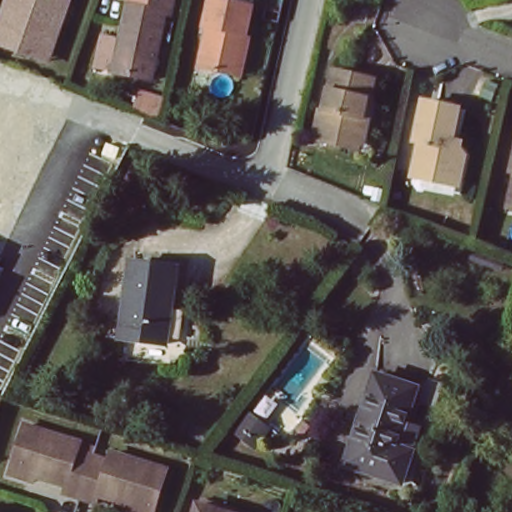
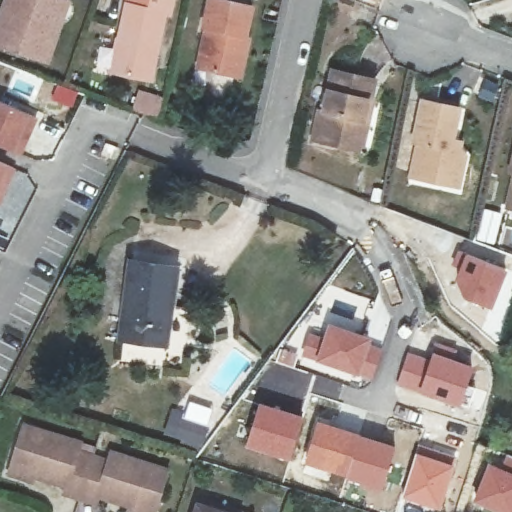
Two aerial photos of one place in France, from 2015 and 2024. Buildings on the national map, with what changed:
unchanged [(50,61),(2,45),(18,0),(71,0),(70,1),(77,4),(57,63),(50,61)]
unchanged [(171,0),(168,14),(159,12),(146,77),(115,72),(128,0),(171,0)]
unchanged [(197,69),(207,26),(200,26),(207,0),(243,0),(256,3),(247,36),(237,78),(230,76),(197,69)]
unchanged [(337,149),(326,146),(314,143),(321,112),(325,114),(335,72),(372,80),(367,101),(363,101),(359,121),(363,121),(357,146),(355,153),(337,149)]
new [(37,119),(20,156),(12,151),(0,146),(0,103),(27,115),(37,119)]
unchanged [(438,174),(412,168),(420,131),(413,130),(419,106),(460,116),(455,137),(463,140),(465,150),(460,171),(458,179),(438,174)]
unchanged [(510,173),(512,162),(512,173),(510,173)]
new [(14,169),(0,205),(0,163),(6,166),(14,169)]
unchanged [(507,210),(512,187),(512,211),(507,210)]
new [(463,297),(455,280),(460,268),(452,264),(459,248),(507,271),(492,307),(463,297)]
unchanged [(135,253),(178,259),(165,350),(121,345),(135,253)]
new [(307,331),(323,335),(327,320),(375,337),(373,342),(385,346),(373,380),(302,355),(307,331)]
new [(407,351),(430,357),(432,349),(475,365),(464,405),(396,385),(407,351)]
demolished [(426,385),(442,391),(417,459),(406,456),(395,486),(340,467),(370,379),(411,393),(426,385)]
new [(260,401),(303,414),(290,459),(245,446),(260,401)]
unchanged [(171,424),(177,405),(213,416),(207,435),(205,442),(195,439),(197,432),(171,424)]
new [(317,419),(396,445),(382,492),(304,465),(317,419)]
unchanged [(27,479),(8,473),(24,423),(80,441),(77,449),(92,454),(78,496),(64,490),(67,482),(37,473),(34,481),(27,479)]
new [(419,439),(457,449),(440,509),(401,497),(419,439)]
unchanged [(128,502),(100,493),(97,501),(78,496),(92,454),(108,459),(111,451),(167,468),(153,512),(133,512),(125,510),(128,502)]
new [(506,453),(512,456),(512,512),(498,512),(473,502),(488,461),(500,467),(506,453)]
unchanged [(200,502),(229,512),(197,512),(200,502)]

